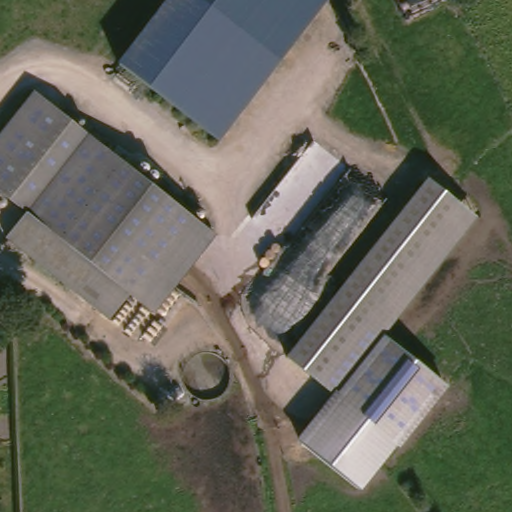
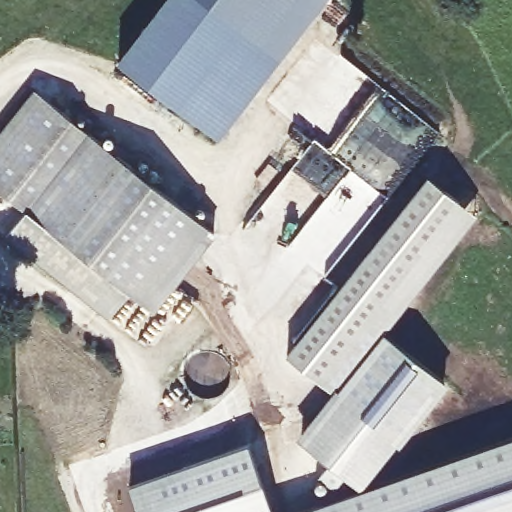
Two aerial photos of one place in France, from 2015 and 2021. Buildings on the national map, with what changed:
unchanged [(218,137),(122,60),(167,0),(324,0),(218,137)]
unchanged [(0,185),(0,136),(40,87),(76,117),(14,197),(0,185)]
unchanged [(220,233),(157,311),(134,292),(31,209),(14,197),(76,117),(220,233)]
unchanged [(486,216),(343,393),(292,353),(432,179),(486,216)]
unchanged [(134,292),(114,317),(11,234),(31,209),(134,292)]
unchanged [(448,386),(400,448),(396,445),(362,490),(297,438),(337,388),(343,393),(388,338),(448,386)]
new [(299,512),(512,439),(512,512),(299,512)]
new [(272,512),(137,512),(128,487),(249,446),(272,512)]

